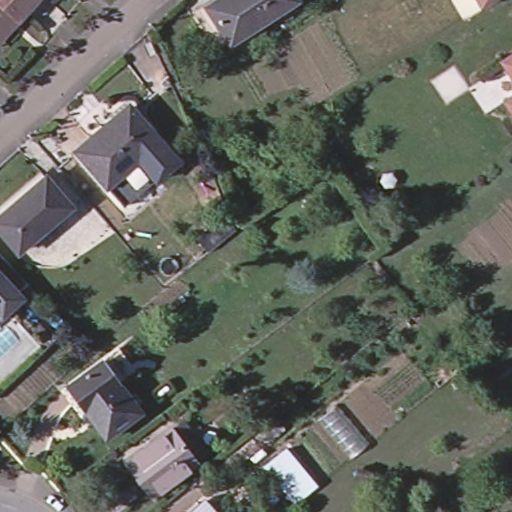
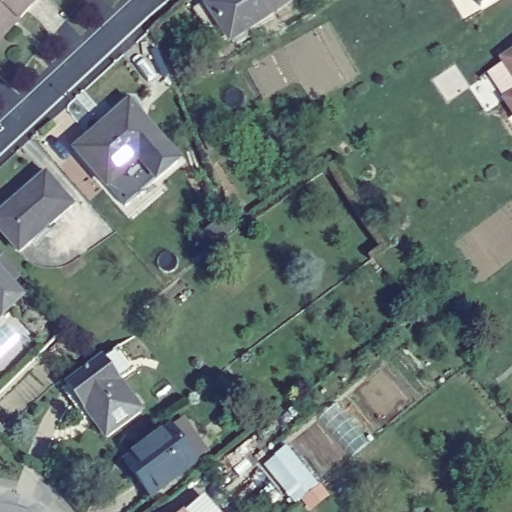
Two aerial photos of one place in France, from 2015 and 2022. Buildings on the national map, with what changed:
unchanged [(0,43),(0,0),(40,0),(0,43)]
unchanged [(213,0),(287,0),(230,39),(206,5),(213,0)]
unchanged [(481,0),(493,0),(485,5),(481,0)]
unchanged [(498,59),(512,50),(512,79),(498,59)]
unchanged [(512,96),(512,116),(503,103),(512,96)]
unchanged [(105,183),(97,174),(95,172),(75,148),(129,105),(149,128),(150,130),(159,140),(105,183)]
unchanged [(70,206),(16,253),(12,248),(10,246),(0,235),(0,213),(44,176),(66,201),(67,203),(70,206)]
unchanged [(23,298),(3,319),(0,315),(0,270),(23,298)]
unchanged [(103,356),(146,406),(113,434),(89,408),(80,415),(60,393),(103,356)]
unchanged [(120,465),(166,428),(178,418),(204,452),(194,461),(148,498),(120,465)]
unchanged [(177,512),(171,512),(175,509),(177,512)]

